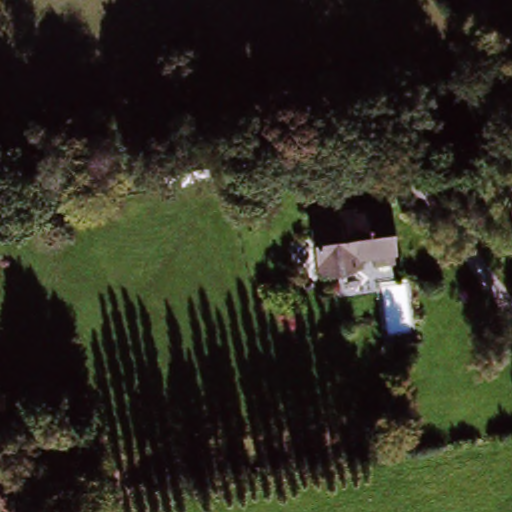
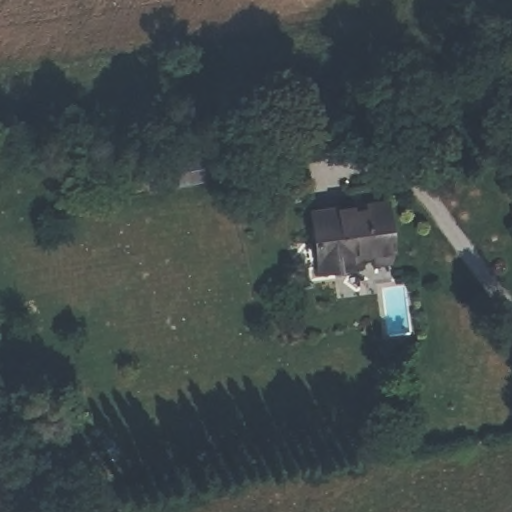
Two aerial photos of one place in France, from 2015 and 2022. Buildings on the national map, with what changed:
unchanged [(309,212),(392,201),(398,260),(360,262),(360,272),(316,279),(309,212)]

